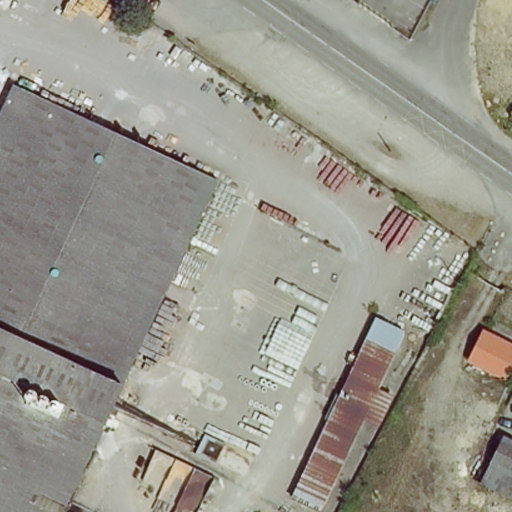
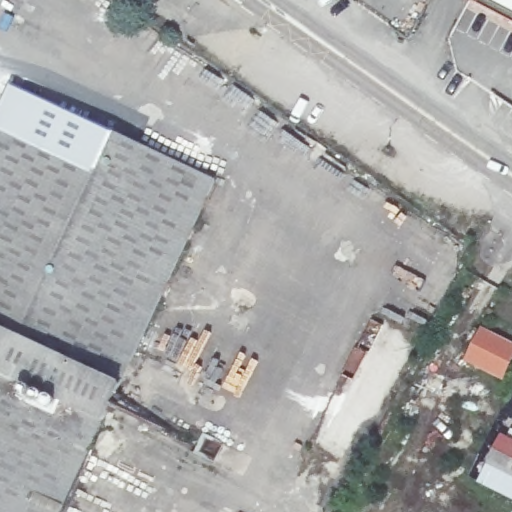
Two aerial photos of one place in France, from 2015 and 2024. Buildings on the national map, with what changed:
new [(470,0),(512,0),(512,23),(470,0)]
unchanged [(220,188),(62,512),(0,512),(0,118),(15,89),(220,188)]
demolished [(402,328),(391,349),(389,347),(370,386),(387,396),(374,423),(359,417),(317,509),(290,496),(363,336),(367,339),(377,315),(402,328)]
unchanged [(463,358),(480,325),(512,344),(512,360),(500,380),(463,358)]
demolished [(509,376),(512,369),(512,378),(509,376)]
demolished [(413,428),(402,449),(378,437),(389,415),(413,428)]
unchanged [(488,463),(502,437),(512,442),(512,475),(491,464),(488,463)]
unchanged [(512,475),(512,503),(479,486),(491,464),(512,475)]

